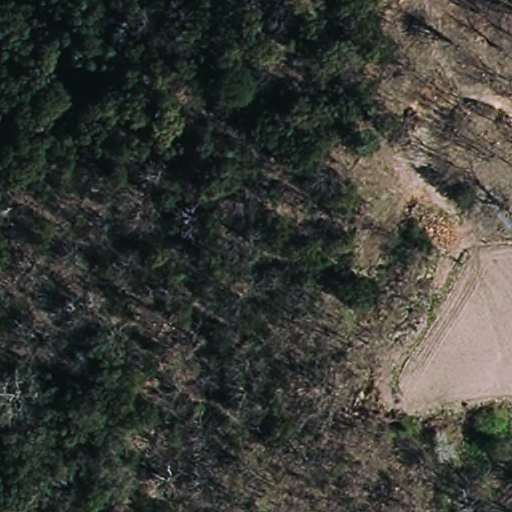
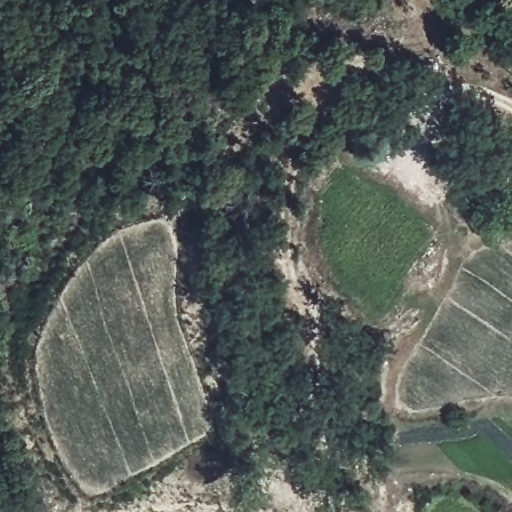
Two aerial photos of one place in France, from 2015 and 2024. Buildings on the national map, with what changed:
[]

